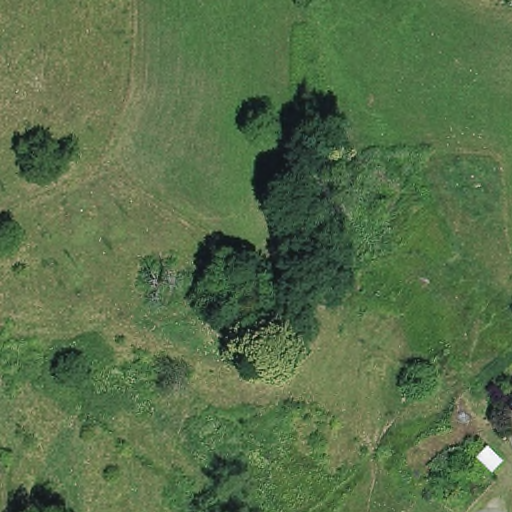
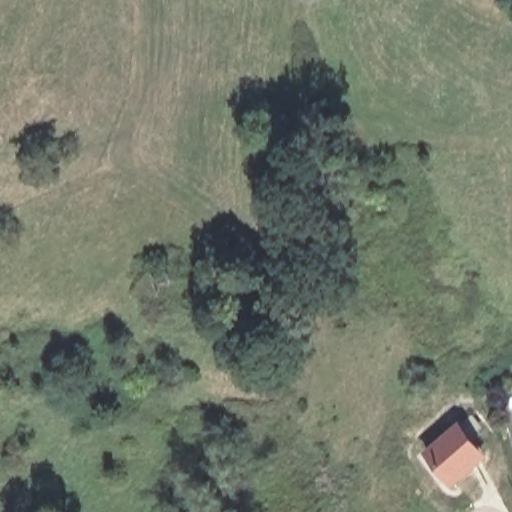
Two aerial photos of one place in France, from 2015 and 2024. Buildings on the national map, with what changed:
unchanged [(512,388),(512,402),(505,392),(512,388)]
new [(488,457),(451,487),(421,452),(456,420),(488,457)]

